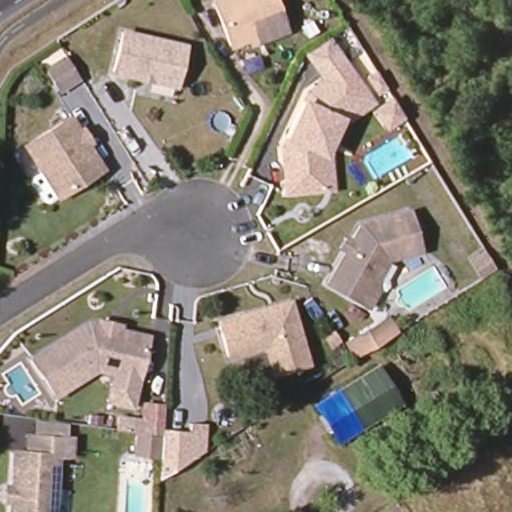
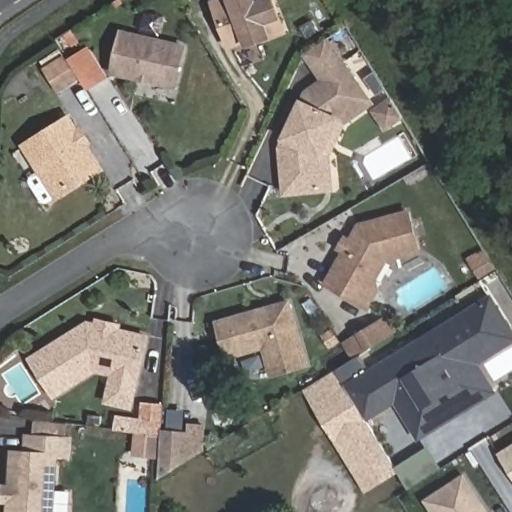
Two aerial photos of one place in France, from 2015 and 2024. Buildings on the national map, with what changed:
unchanged [(247,40),(229,46),(213,3),(220,0),(273,0),(284,31),(258,41),(249,45),(247,40)]
unchanged [(122,33),(183,47),(175,87),(113,73),(122,33)]
unchanged [(46,69),(65,57),(79,79),(60,91),(46,69)]
unchanged [(338,123),(324,153),(329,185),(323,186),(283,192),(276,146),(302,91),(341,67),(362,101),(365,106),(338,123)]
unchanged [(92,154),(101,168),(58,197),(25,147),(68,118),(78,133),(81,131),(90,143),(83,148),(88,156),(92,154)]
unchanged [(363,307),(356,303),(321,283),(354,225),(402,212),(413,250),(380,259),(369,279),(372,290),(363,307)]
new [(414,429),(481,388),(464,360),(488,345),(469,313),(491,299),(512,332),(512,340),(476,363),(494,392),(419,437),(414,429)]
unchanged [(306,364),(272,374),(271,371),(264,347),(227,357),(217,324),(265,310),(276,307),(288,303),(302,351),(306,364)]
new [(469,313),(488,345),(464,360),(481,388),(414,429),(377,369),(469,313)]
unchanged [(110,382),(112,370),(94,366),(52,391),(30,354),(86,320),(98,323),(99,318),(118,322),(117,327),(145,333),(136,375),(133,387),(110,382)]
unchanged [(375,327),(380,324),(388,337),(383,341),(369,349),(361,336),(375,327)]
new [(316,406),(305,389),(335,370),(361,354),(372,372),(377,369),(396,400),(391,403),(365,419),(346,388),(365,419),(397,470),(366,489),(316,406)]
demolished [(376,369),(397,403),(337,440),(316,405),(376,369)]
unchanged [(114,428),(118,416),(142,418),(145,402),(162,405),(158,458),(135,455),(135,434),(114,428)]
unchanged [(60,424),(60,438),(65,439),(64,456),(51,455),(47,512),(4,512),(7,453),(20,454),(21,436),(27,436),(28,422),(60,424)]
new [(204,452),(158,479),(158,458),(160,429),(185,432),(186,423),(205,425),(204,452)]
new [(512,448),(512,475),(499,456),(512,448)]
new [(435,512),(427,501),(464,477),(487,512),(435,512)]

